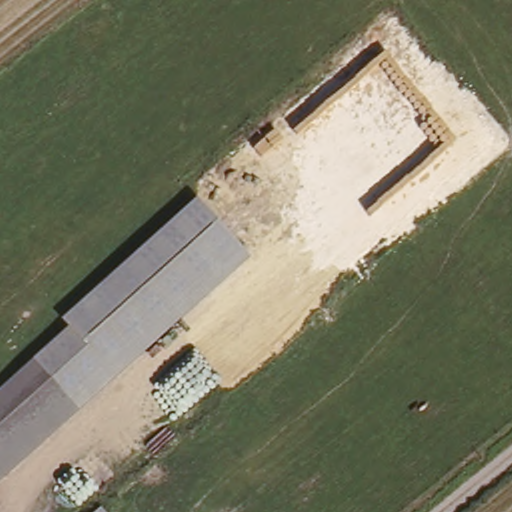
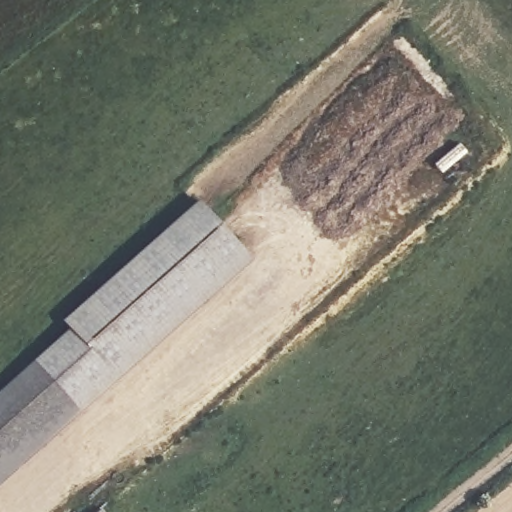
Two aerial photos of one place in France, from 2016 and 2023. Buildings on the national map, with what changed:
unchanged [(0,406),(0,388),(70,326),(64,318),(200,195),(254,255),(84,411),(76,406),(41,368),(0,406)]
unchanged [(76,406),(0,476),(0,406),(41,368),(76,406)]
unchanged [(101,506),(107,512),(93,512),(101,506)]

